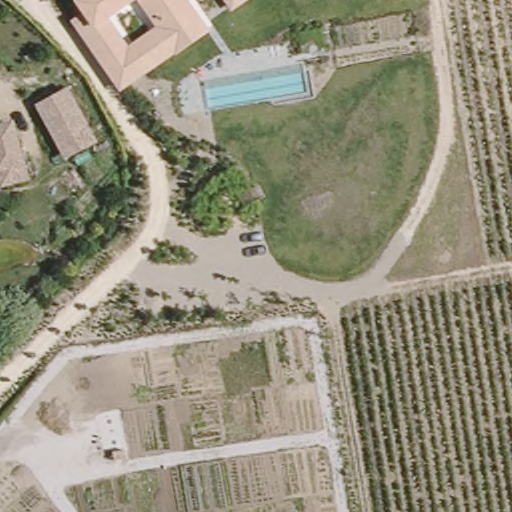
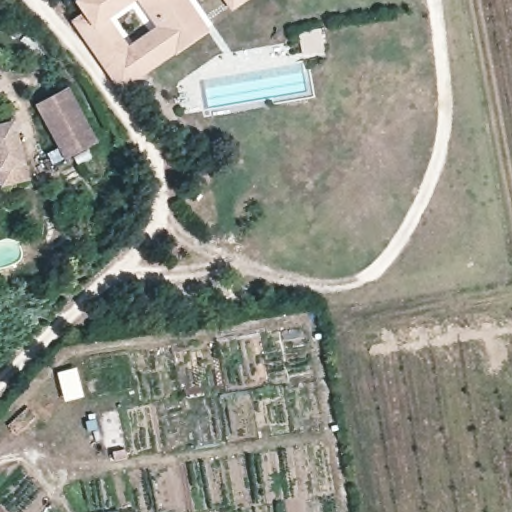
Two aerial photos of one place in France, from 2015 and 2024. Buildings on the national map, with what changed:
unchanged [(138,0),(193,0),(211,29),(120,91),(72,20),(83,13),(75,0),(76,0),(138,0)]
unchanged [(224,0),(249,0),(232,11),(224,0)]
unchanged [(65,90),(98,145),(67,162),(33,109),(65,90)]
unchanged [(31,181),(0,188),(0,125),(12,121),(31,181)]

